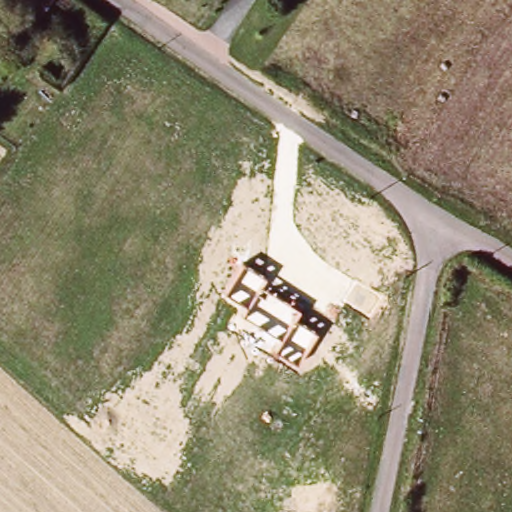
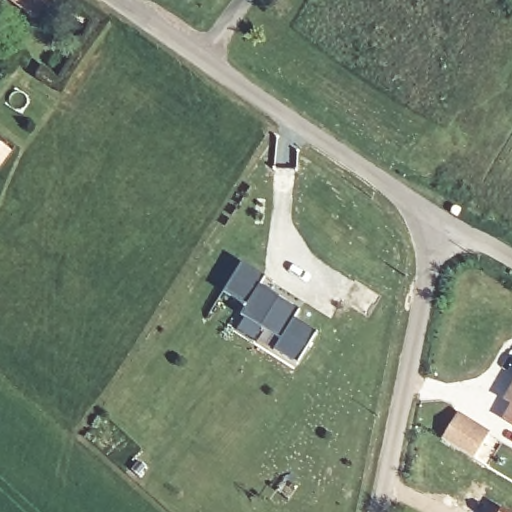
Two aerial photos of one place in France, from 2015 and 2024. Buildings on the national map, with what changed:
unchanged [(12,0),(46,0),(36,15),(12,0)]
new [(299,309),(293,319),(316,333),(297,363),(275,350),(281,340),(242,314),(247,306),(225,292),(244,265),(265,277),(260,285),(299,309)]
new [(512,405),(503,400),(512,385),(512,405)]
new [(491,431),(475,459),(442,438),(459,411),(491,431)]
new [(512,511),(512,512),(498,512),(503,505),(512,511)]

